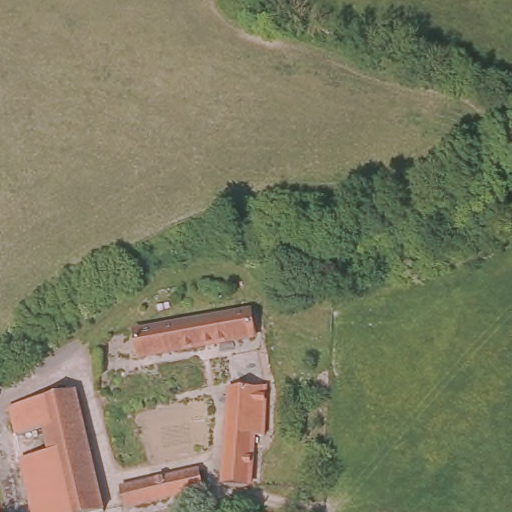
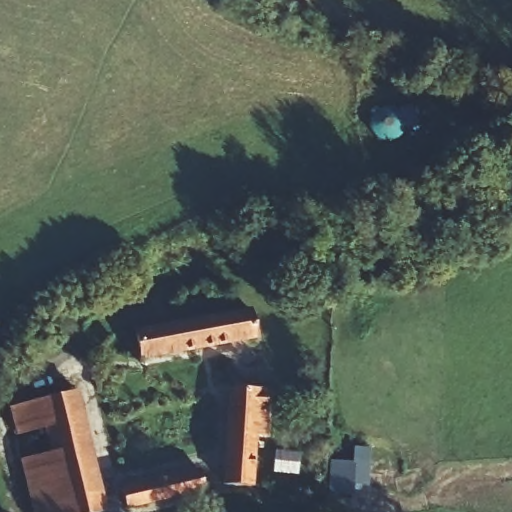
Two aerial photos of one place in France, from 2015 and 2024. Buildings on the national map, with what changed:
unchanged [(133,359),(132,332),(247,322),(252,349),(133,359)]
unchanged [(15,442),(9,411),(38,404),(78,396),(103,512),(62,512),(50,459),(45,435),(15,442)]
unchanged [(269,399),(265,449),(255,448),(250,497),(223,495),(230,396),(269,399)]
new [(353,448),(370,449),(367,487),(360,486),(359,498),(327,495),(329,461),(352,463),(353,448)]
unchanged [(50,459),(62,512),(31,512),(21,466),(50,459)]
unchanged [(202,479),(205,497),(135,512),(125,512),(122,496),(202,479)]

